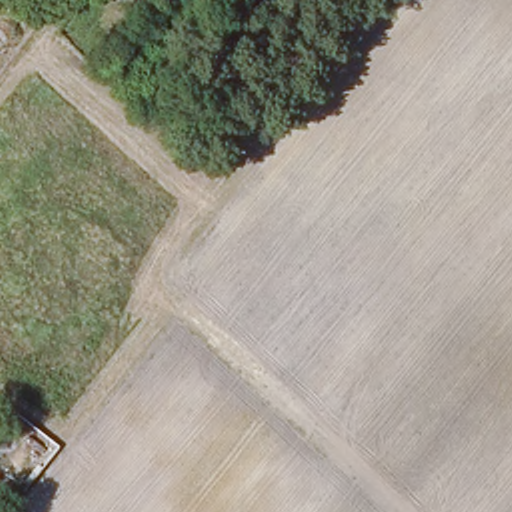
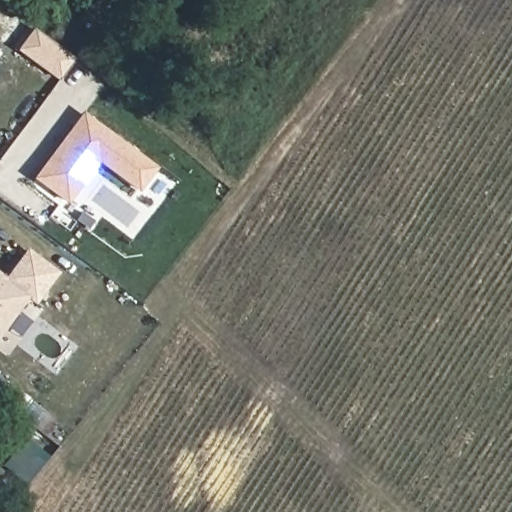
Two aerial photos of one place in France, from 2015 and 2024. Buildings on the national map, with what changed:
new [(58,81),(17,52),(33,30),(73,60),(58,81)]
new [(69,203),(34,178),(83,112),(158,169),(137,194),(98,165),(69,203)]
new [(26,248),(58,272),(36,305),(28,300),(31,295),(5,276),(26,248)]
new [(31,322),(21,336),(9,327),(0,339),(0,273),(31,295),(19,313),(31,322)]

